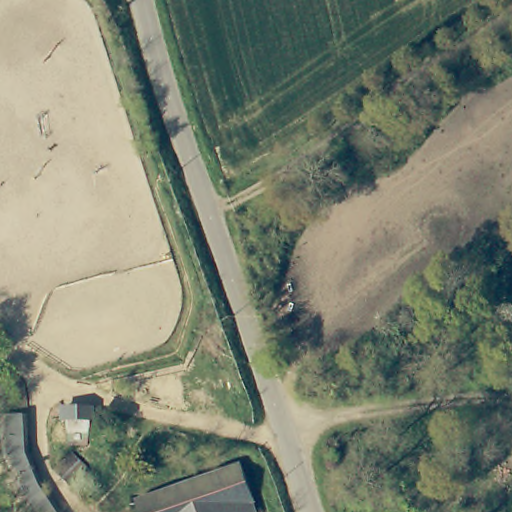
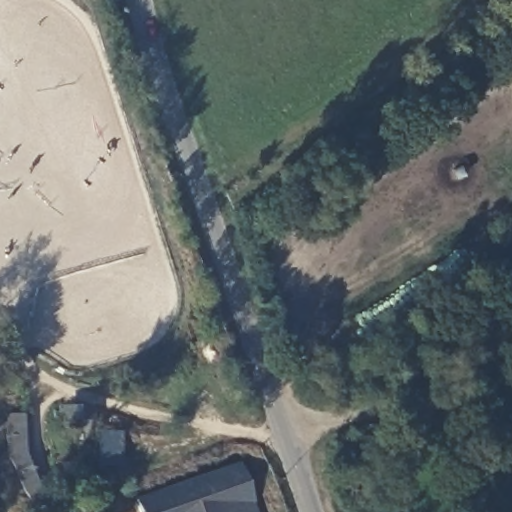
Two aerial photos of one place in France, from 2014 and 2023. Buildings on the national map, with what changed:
unchanged [(132,504),(240,469),(253,504),(248,507),(250,512),(135,512),(132,504)]

